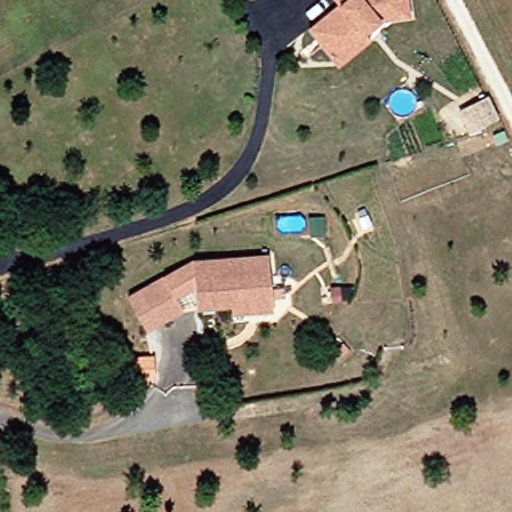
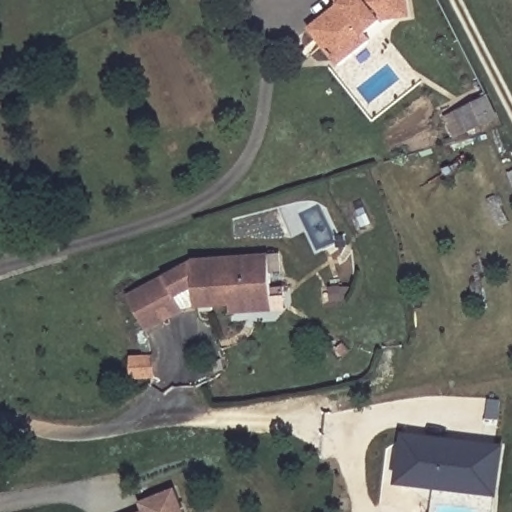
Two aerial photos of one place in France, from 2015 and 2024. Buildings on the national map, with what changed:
unchanged [(332,67),(320,51),(303,30),(334,4),(331,0),(403,0),(405,14),(376,18),(359,35),(363,41),(332,67)]
unchanged [(497,125),(470,138),(461,120),(487,106),(497,125)]
unchanged [(225,296),(188,298),(188,274),(165,285),(173,299),(136,320),(117,285),(190,247),(265,244),(266,288),(267,301),(225,302),(225,296)]
new [(480,512),(480,510),(441,506),(440,512),(432,512),(435,491),(399,483),(402,432),(506,445),(496,512),(480,512)]
new [(175,491),(182,512),(143,512),(140,504),(175,491)]

